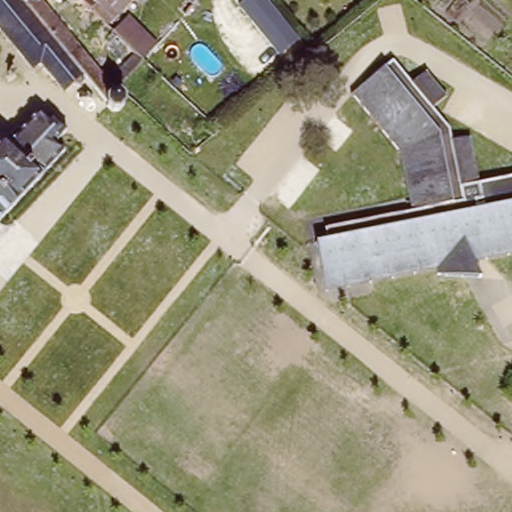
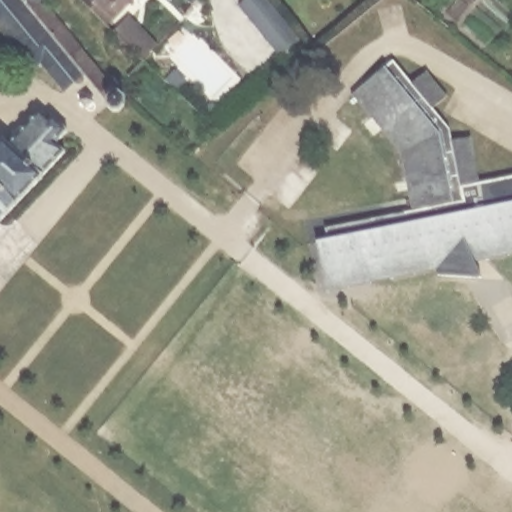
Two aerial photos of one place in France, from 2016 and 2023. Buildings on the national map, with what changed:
unchanged [(125,94),(130,106),(125,117),(112,113),(110,102),(85,77),(69,97),(43,66),(35,70),(0,31),(0,0),(50,0),(105,70),(125,94)]
unchanged [(86,0),(125,0),(132,6),(116,21),(110,26),(86,0)]
unchanged [(244,0),(266,0),(299,39),(280,54),(238,5),(244,0)]
unchanged [(435,272),(325,293),(325,289),(315,238),(326,236),(324,225),(410,209),(398,150),(352,94),(365,82),(392,61),(412,83),(427,70),(449,95),(434,108),(452,128),(455,138),(480,135),(490,180),(512,176),(512,252),(471,259),(481,279),(437,278),(435,272)]
unchanged [(87,107),(82,112),(75,105),(81,100),(87,107)]
unchanged [(17,138),(20,142),(45,116),(52,123),(56,119),(73,135),(61,148),(70,156),(47,180),(49,182),(0,232),(0,156),(17,138)]

